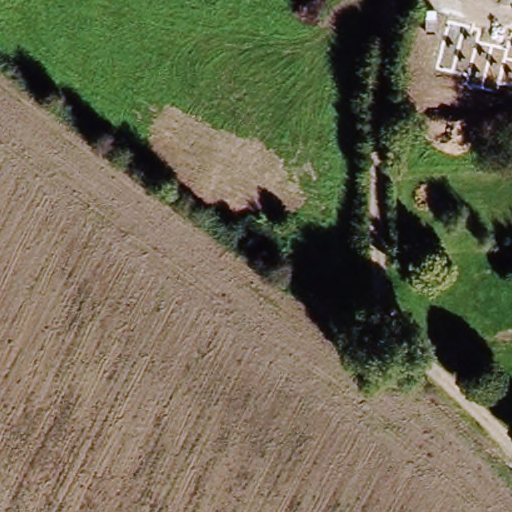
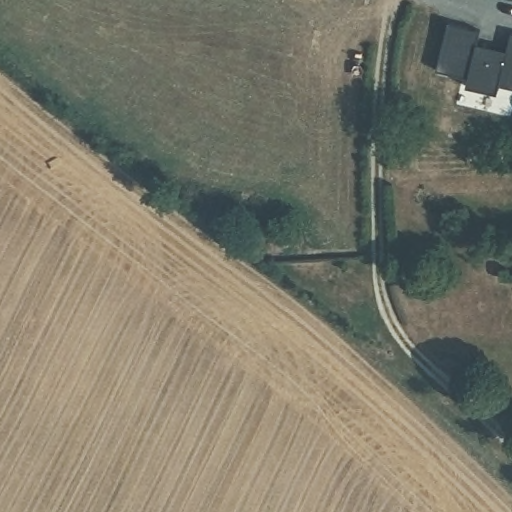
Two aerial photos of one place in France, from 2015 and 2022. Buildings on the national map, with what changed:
new [(482,29),(479,41),(508,49),(512,31),(512,32),(512,86),(500,83),(497,93),(467,84),(469,74),(437,69),(449,22),(482,29)]

